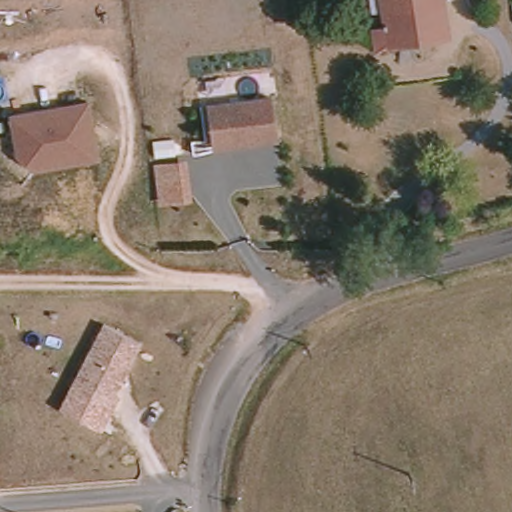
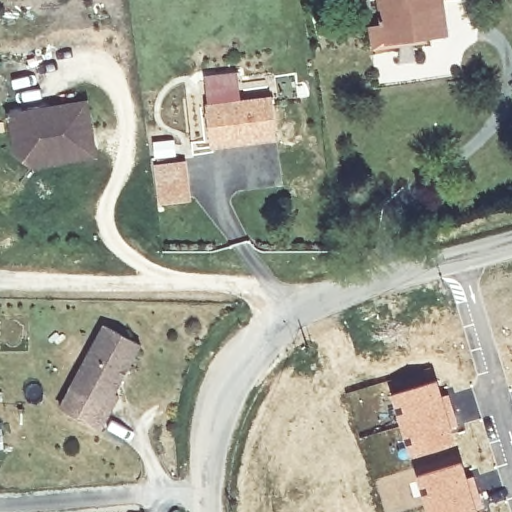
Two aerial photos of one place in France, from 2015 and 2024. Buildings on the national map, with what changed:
unchanged [(374,48),(371,27),(385,25),(381,0),(441,0),(447,31),(425,34),(426,39),(374,48)]
unchanged [(97,151),(34,162),(17,149),(10,110),(88,96),(97,151)]
unchanged [(207,115),(272,106),(277,146),(244,151),(212,156),(212,150),(207,115)]
unchanged [(157,163),(187,158),(194,203),(162,205),(157,163)]
unchanged [(106,323),(144,344),(117,392),(122,396),(114,411),(70,387),(106,323)]
new [(437,379),(442,395),(449,393),(460,428),(454,430),(457,444),(411,459),(390,393),(437,379)]
new [(467,476),(474,474),(482,510),(479,511),(479,512),(426,512),(415,475),(462,460),(467,476)]

